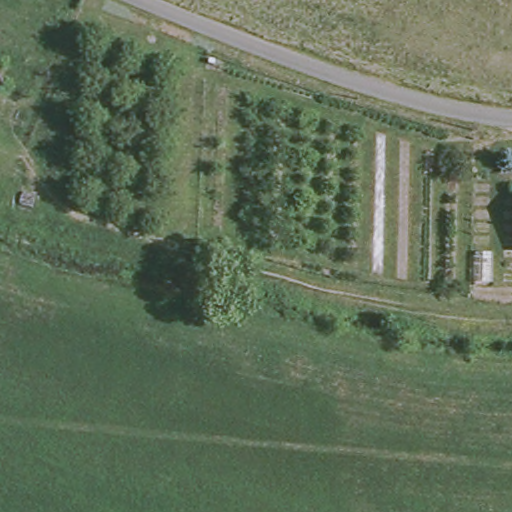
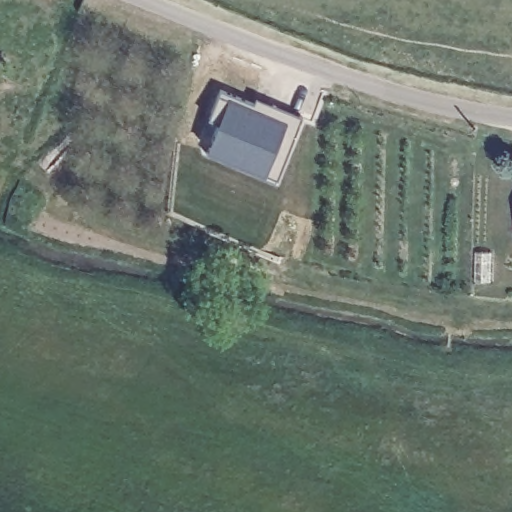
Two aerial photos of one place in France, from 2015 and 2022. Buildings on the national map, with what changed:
new [(207,151),(219,121),(208,117),(219,89),(254,103),(257,97),(302,116),(277,178),(207,151)]

